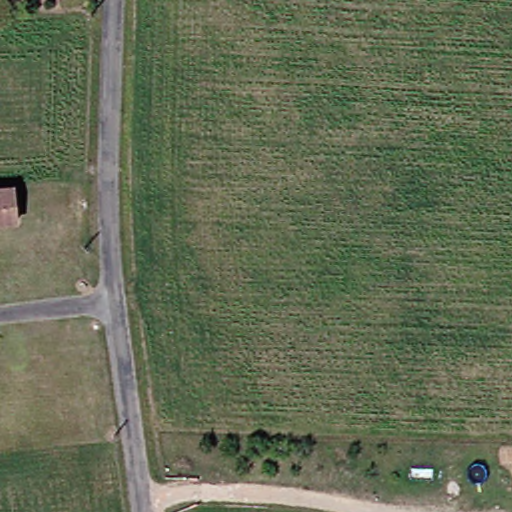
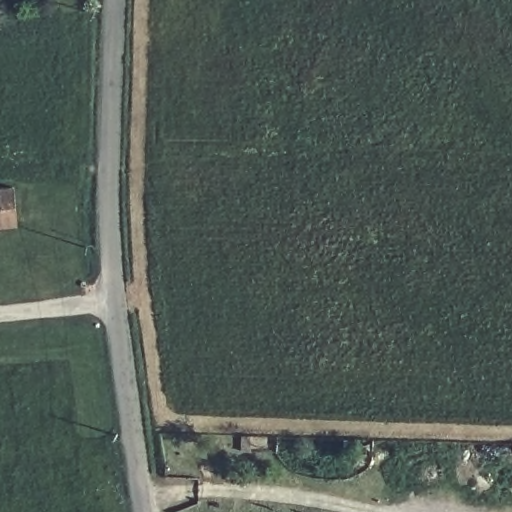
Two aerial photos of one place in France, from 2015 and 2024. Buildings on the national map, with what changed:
unchanged [(17,221),(0,223),(0,190),(14,189),(17,221)]

